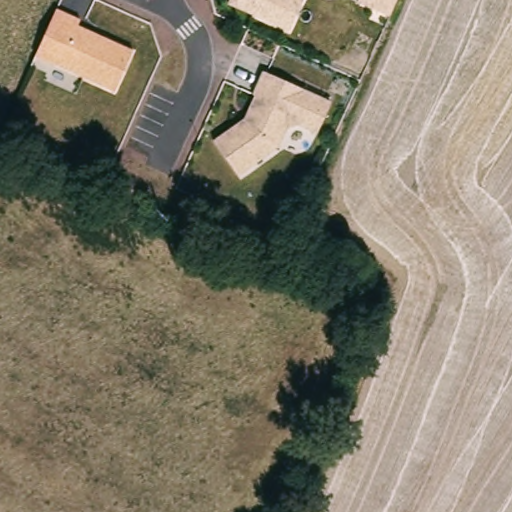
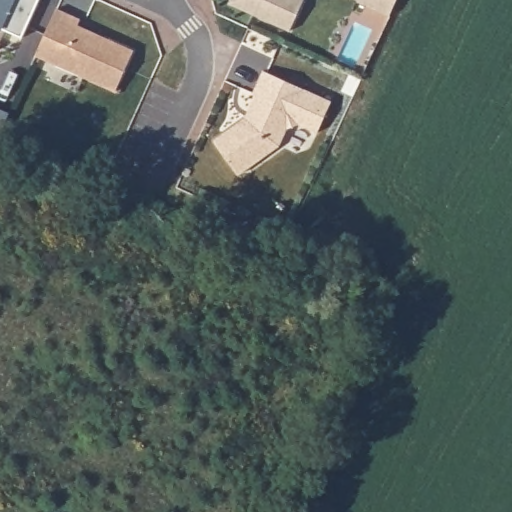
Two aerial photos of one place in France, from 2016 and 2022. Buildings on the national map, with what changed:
new [(22,41),(0,31),(0,0),(41,0),(22,41)]
unchanged [(289,28),(226,0),(302,0),(289,28)]
unchanged [(383,26),(365,17),(369,7),(356,1),(356,0),(397,0),(383,26)]
unchanged [(84,18),(81,25),(138,49),(119,93),(35,55),(58,4),(84,18)]
unchanged [(331,100),(317,134),(294,124),(283,146),(239,175),(211,137),(246,113),(263,70),(331,100)]

